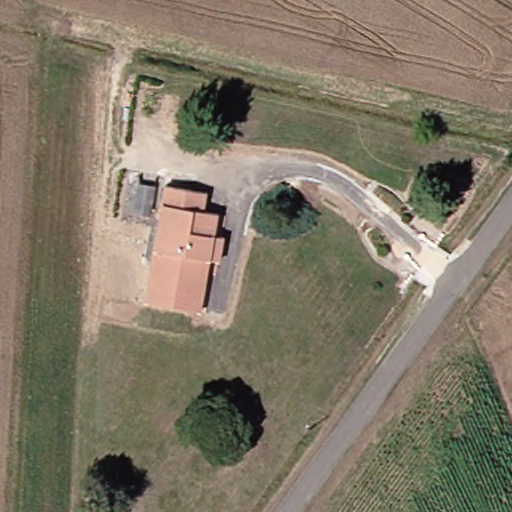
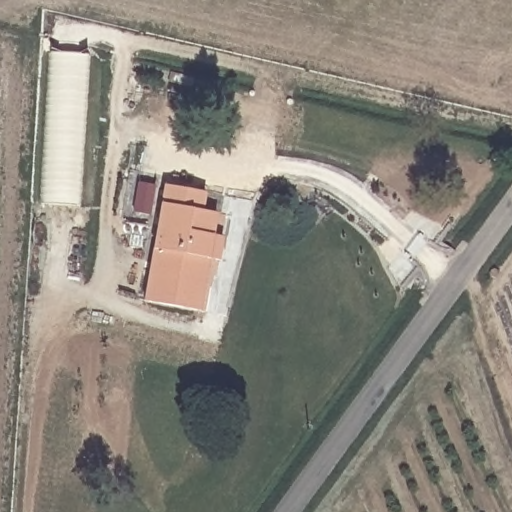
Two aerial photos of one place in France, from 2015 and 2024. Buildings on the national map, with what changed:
new [(80,205),(44,202),(53,53),(90,55),(80,205)]
new [(151,216),(133,213),(139,181),(157,184),(151,216)]
unchanged [(171,184),(211,191),(209,211),(220,215),(212,257),(207,256),(202,280),(207,282),(203,309),(150,299),(171,184)]

